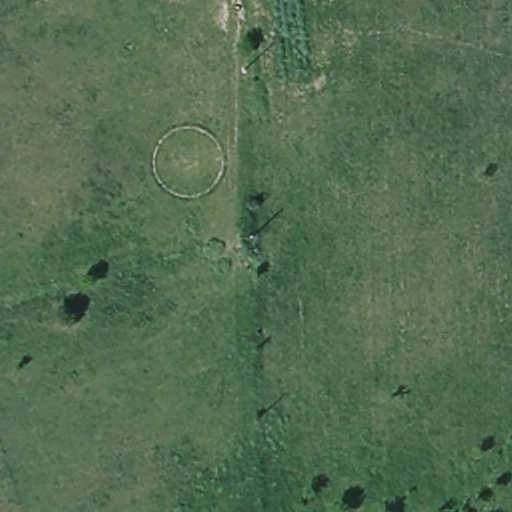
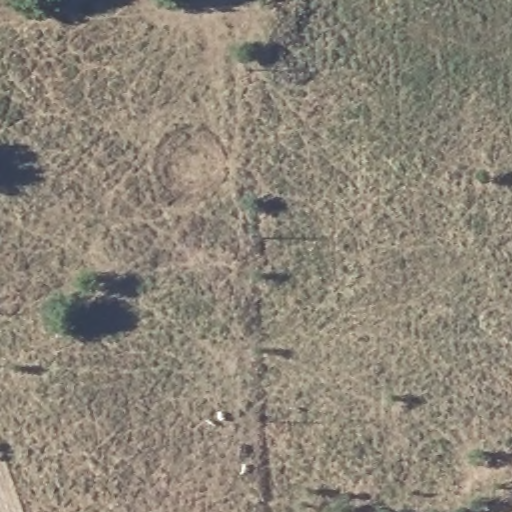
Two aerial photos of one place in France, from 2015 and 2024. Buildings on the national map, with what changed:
[]

